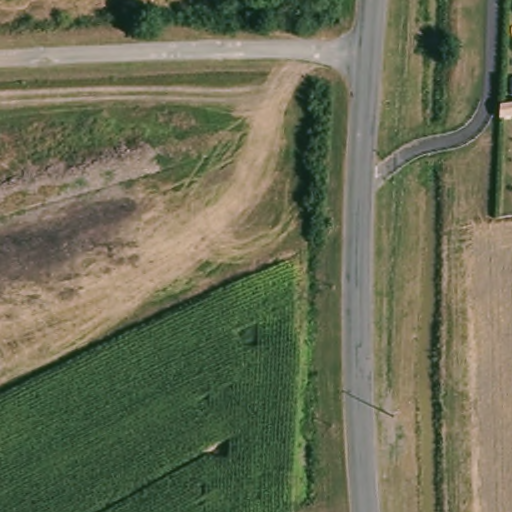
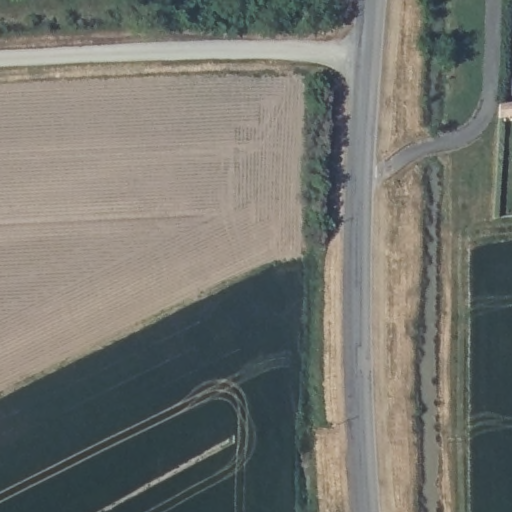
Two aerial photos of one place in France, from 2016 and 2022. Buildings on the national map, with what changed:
unchanged [(512,117),(499,119),(499,104),(512,102),(512,117)]

